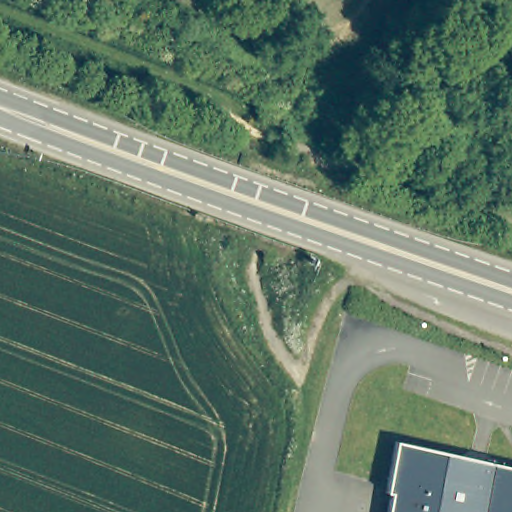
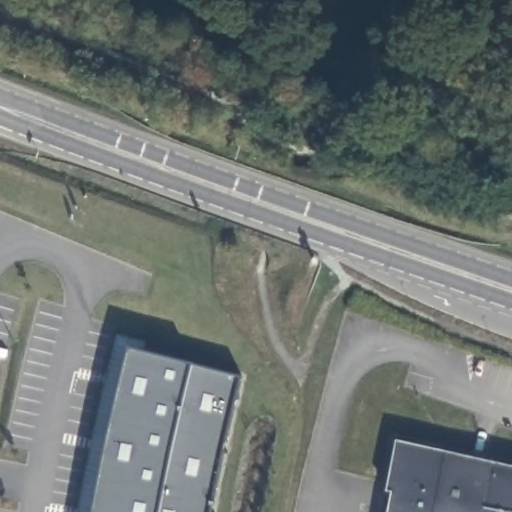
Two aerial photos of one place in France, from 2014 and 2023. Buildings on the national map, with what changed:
unchanged [(415,76),(422,65),(431,72),(424,82),(415,76)]
new [(115,415),(133,347),(195,365),(241,376),(231,410),(217,475),(210,512),(96,512),(99,490),(115,415)]
unchanged [(396,512),(400,491),(395,490),(405,441),(512,466),(512,512),(396,512)]

